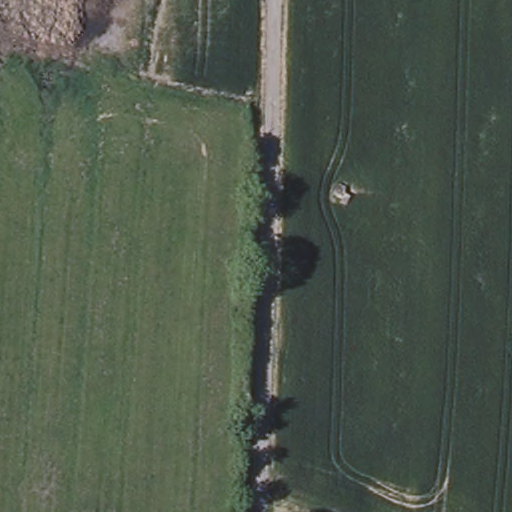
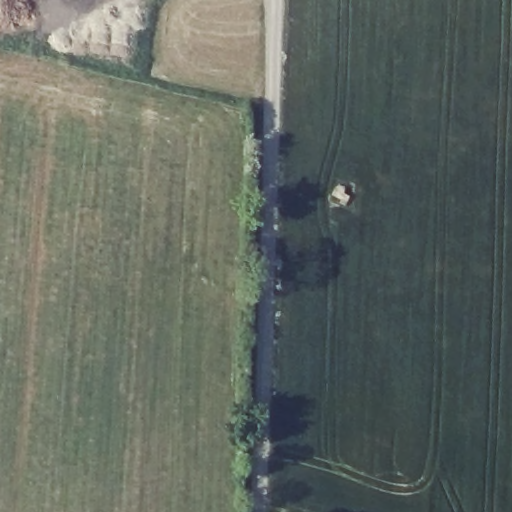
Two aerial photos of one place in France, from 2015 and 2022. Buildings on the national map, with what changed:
unchanged [(351,194),(342,205),(327,195),(336,183),(351,194)]

